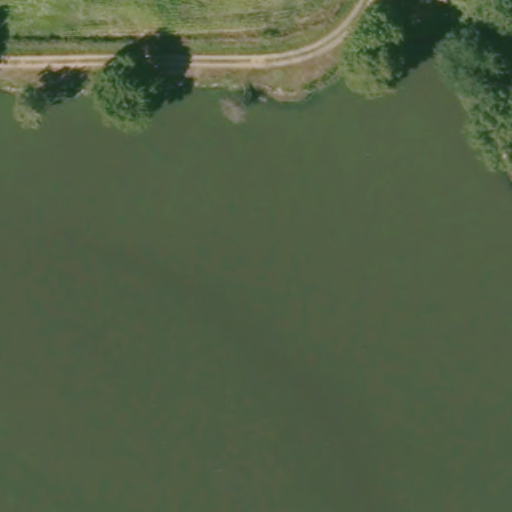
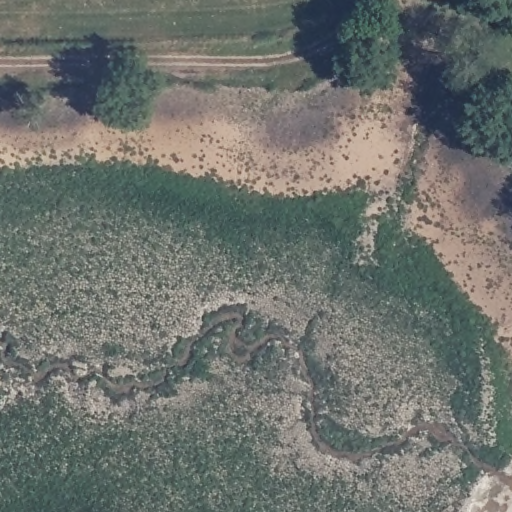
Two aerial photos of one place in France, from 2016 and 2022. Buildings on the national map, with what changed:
unchanged [(437,0),(440,0),(440,1),(437,0)]

